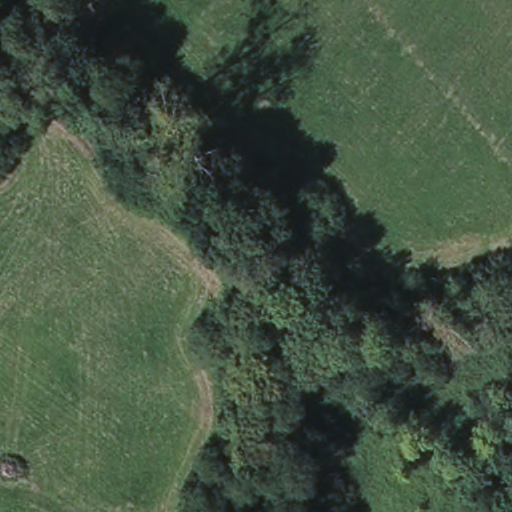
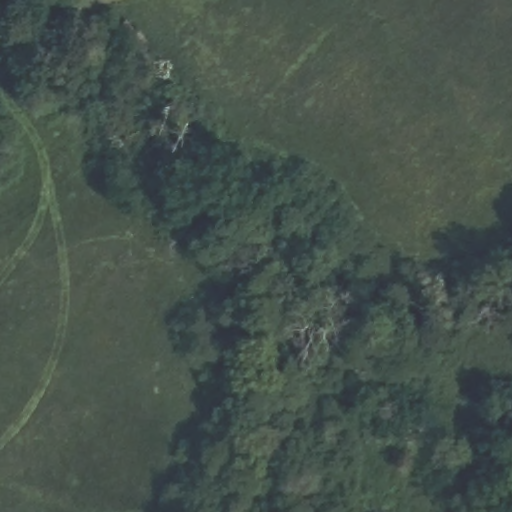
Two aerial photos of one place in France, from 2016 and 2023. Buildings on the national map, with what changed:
unchanged [(118,11),(146,41),(131,55),(103,25),(118,11)]

